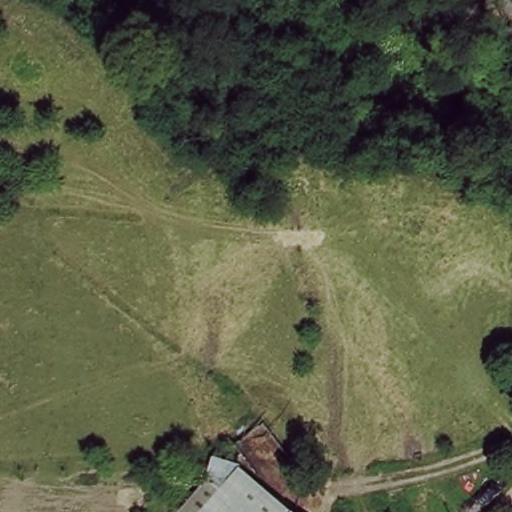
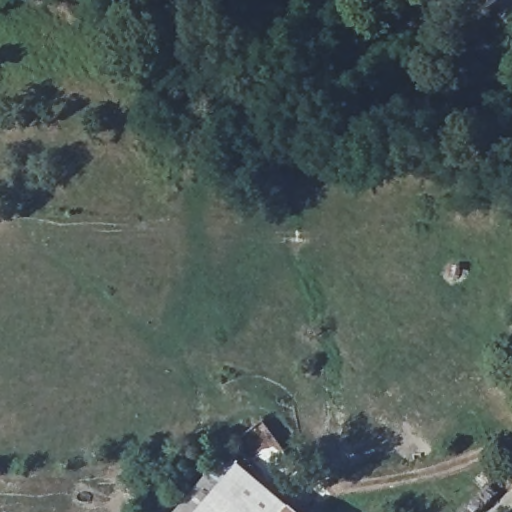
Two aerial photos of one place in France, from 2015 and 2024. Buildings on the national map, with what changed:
unchanged [(290,510),(288,512),(202,512),(241,468),(290,510)]
unchanged [(288,512),(290,510),(292,512),(288,512)]

